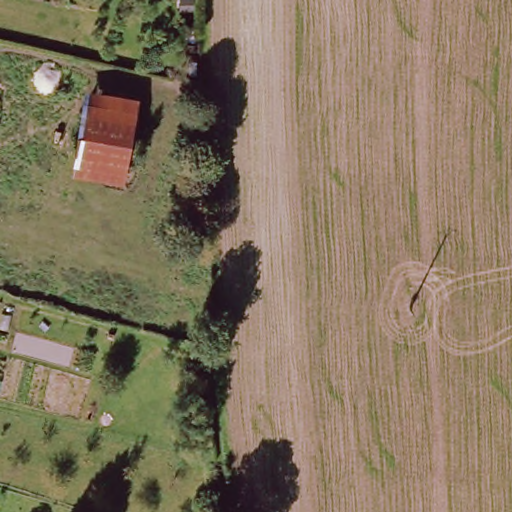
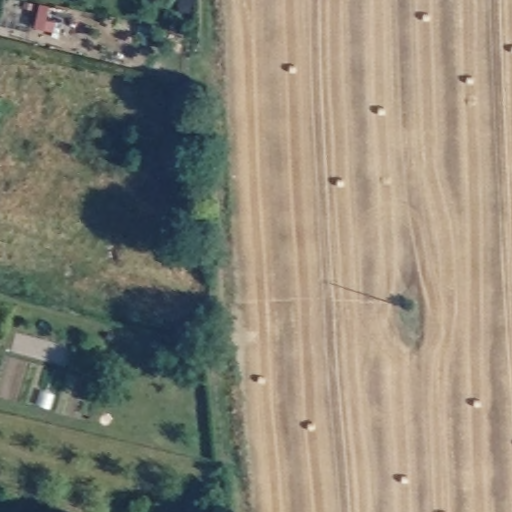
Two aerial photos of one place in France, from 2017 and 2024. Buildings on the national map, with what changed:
demolished [(85,90),(136,97),(123,184),(67,169),(85,90)]

